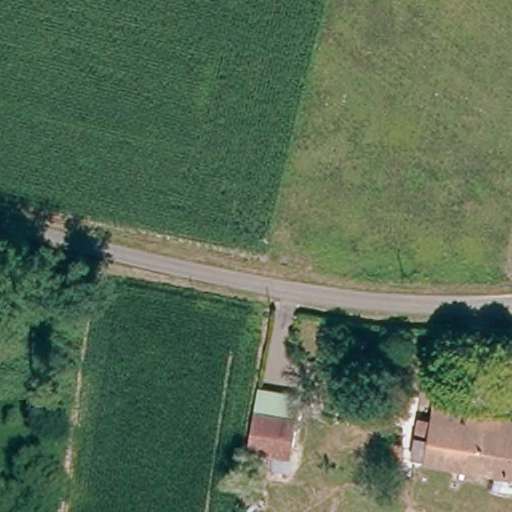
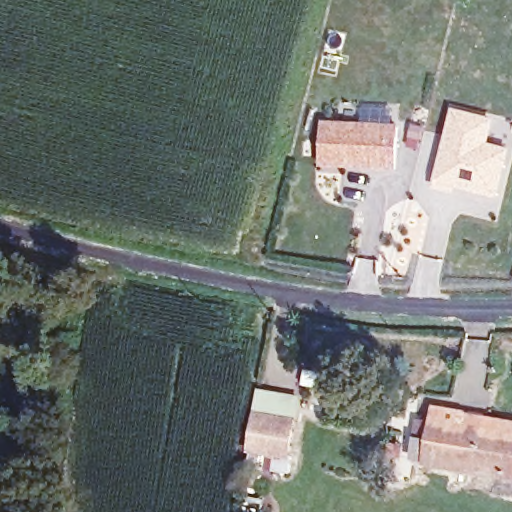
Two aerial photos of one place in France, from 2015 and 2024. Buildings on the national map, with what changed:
new [(494,168),(486,198),(457,190),(454,185),(445,183),(443,192),(426,188),(446,114),(482,124),(476,148),(498,154),(494,168)]
new [(398,169),(321,166),(322,121),(399,124),(398,169)]
unchanged [(299,458),(297,473),(259,469),(261,452),(265,415),(268,394),(303,398),(300,420),(295,457),(299,458)]
unchanged [(431,463),(431,462),(418,461),(424,419),(437,421),(437,419),(439,408),(512,418),(512,475),(431,463)]

